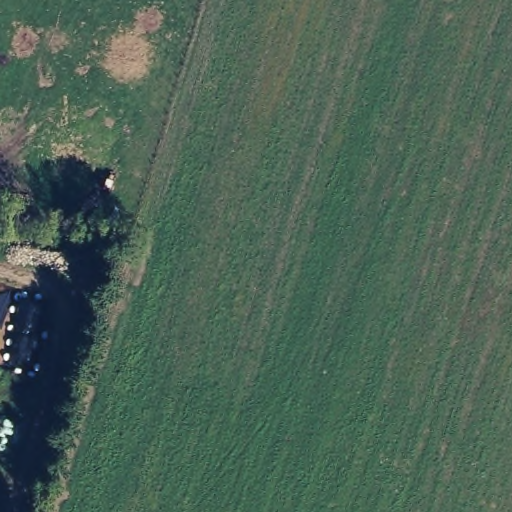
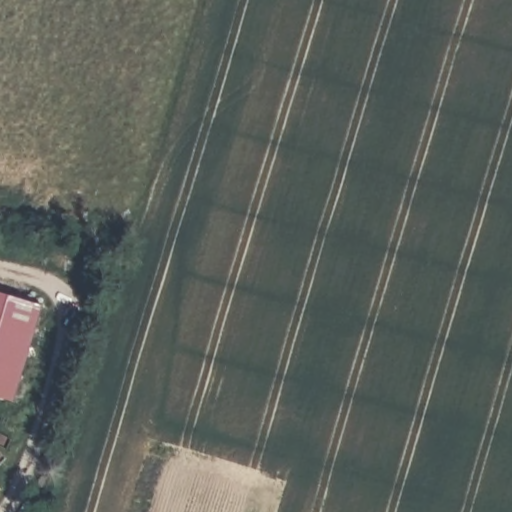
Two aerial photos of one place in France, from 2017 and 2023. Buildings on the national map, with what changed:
new [(15,402),(0,398),(0,292),(43,305),(15,402)]

